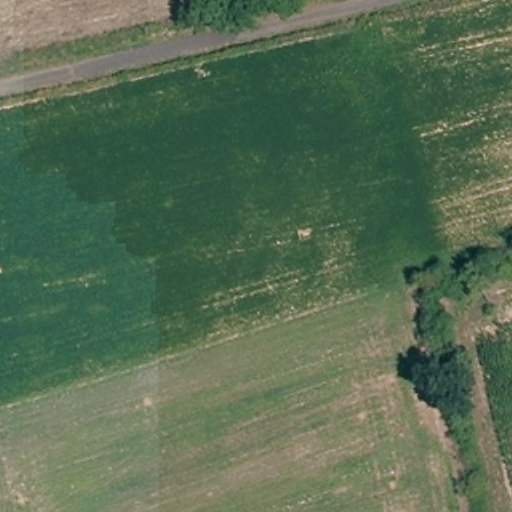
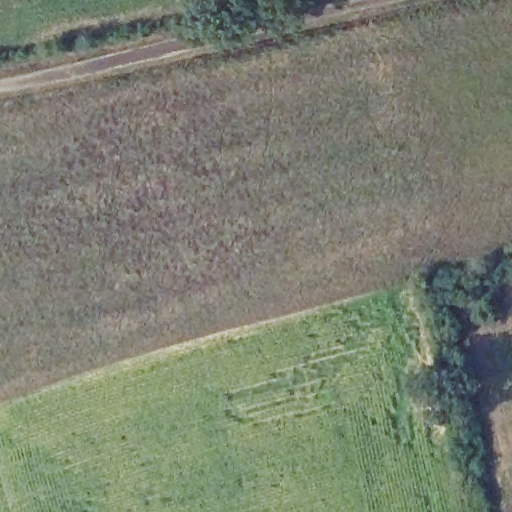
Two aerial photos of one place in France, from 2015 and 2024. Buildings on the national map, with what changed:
[]

